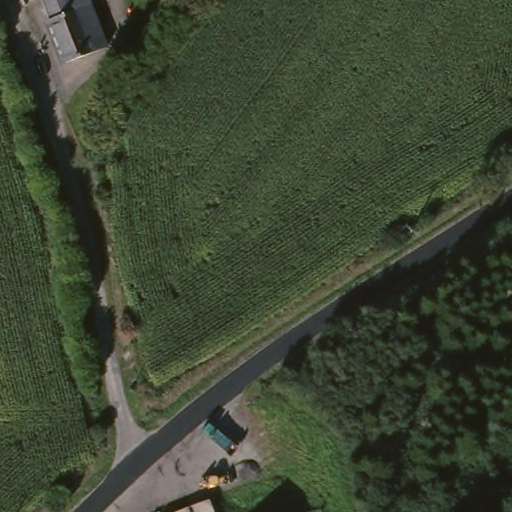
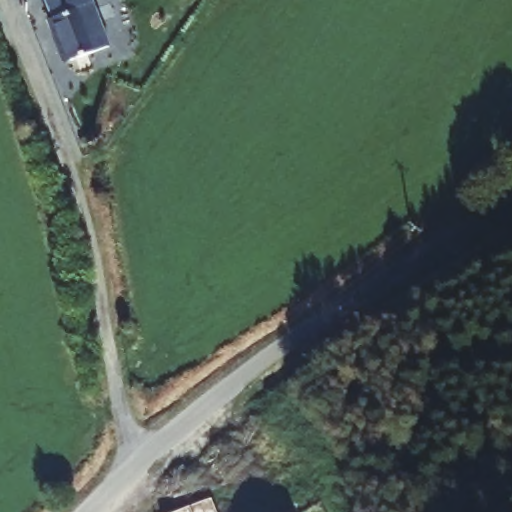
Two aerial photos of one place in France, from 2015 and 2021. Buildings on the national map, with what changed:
unchanged [(45,0),(93,0),(109,45),(66,59),(45,0)]
unchanged [(221,512),(169,512),(215,496),(221,512)]

